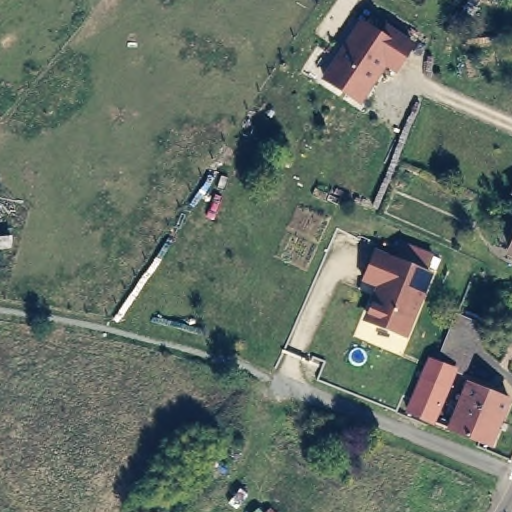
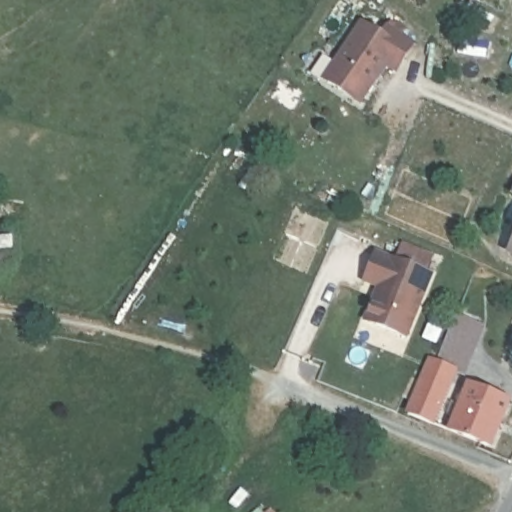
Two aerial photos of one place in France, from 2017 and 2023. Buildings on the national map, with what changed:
unchanged [(398,74),(385,68),(362,105),(321,80),(359,20),(382,32),(388,26),(415,44),(398,74)]
unchanged [(510,186),(512,183),(512,187),(510,186)]
unchanged [(508,244),(512,233),(512,245),(508,244)]
unchanged [(378,291),(365,286),(380,244),(437,270),(410,341),(367,322),(378,291)]
unchanged [(458,315),(482,325),(463,370),(455,368),(435,420),(413,412),(433,357),(442,360),(458,315)]
unchanged [(470,380),(511,397),(495,443),(452,425),(470,380)]
unchanged [(275,512),(270,512),(272,510),(275,512)]

